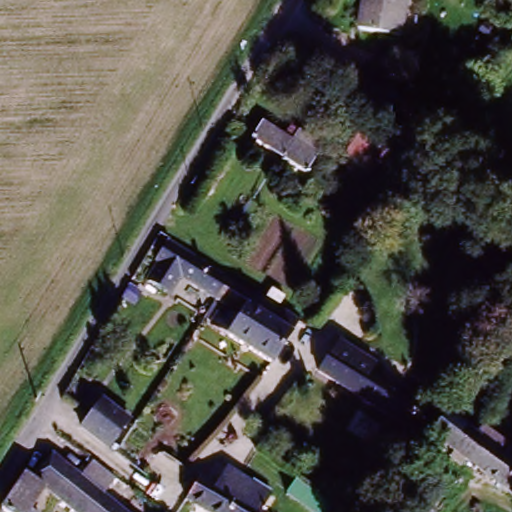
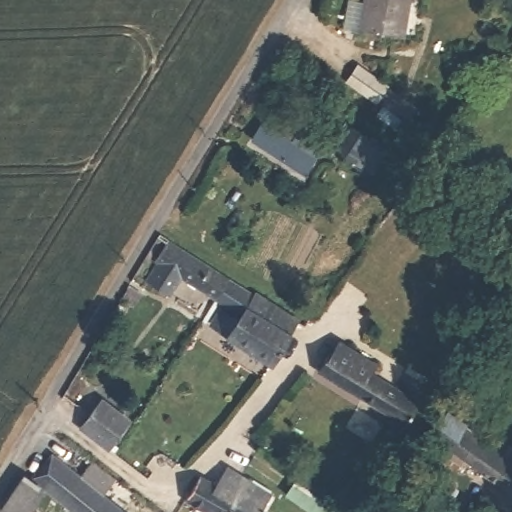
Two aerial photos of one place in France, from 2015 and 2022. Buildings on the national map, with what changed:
unchanged [(404,32),(362,26),(367,0),(411,0),(404,32)]
unchanged [(412,112),(403,124),(373,101),(383,89),(412,112)]
unchanged [(250,141),(264,123),(315,161),(301,180),(250,141)]
unchanged [(375,145),(369,156),(374,161),(368,172),(346,155),(362,135),(375,145)]
unchanged [(140,283),(151,263),(147,260),(160,236),(226,277),(209,301),(172,277),(160,295),(140,283)]
unchanged [(226,277),(299,320),(269,362),(225,335),(236,318),(209,301),(226,277)]
unchanged [(344,388),(315,369),(336,337),(340,329),(372,350),(366,358),(387,373),(416,393),(396,421),(344,388)]
unchanged [(117,448),(87,430),(107,400),(137,418),(117,448)]
unchanged [(444,404),(491,438),(498,430),(512,441),(512,500),(421,434),(444,404)]
unchanged [(399,445),(404,451),(388,475),(366,458),(396,421),(411,431),(399,445)]
unchanged [(48,494),(29,479),(50,454),(69,468),(79,477),(90,461),(112,478),(102,495),(122,512),(72,512),(56,500),(48,494)]
unchanged [(226,467),(265,490),(256,506),(263,510),(262,512),(206,512),(177,496),(196,470),(216,482),(226,467)]
unchanged [(16,481),(37,496),(27,512),(2,512),(0,511),(0,508),(16,481)]

